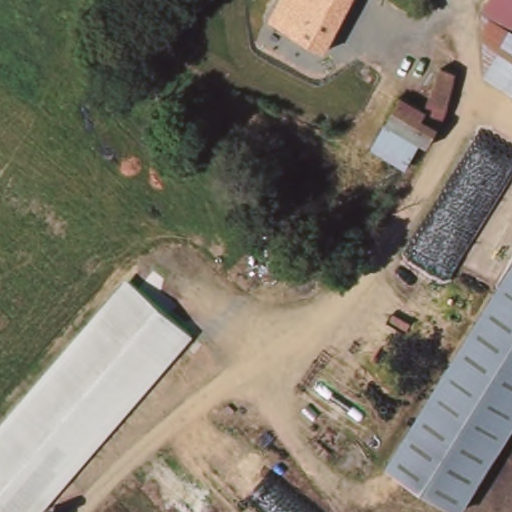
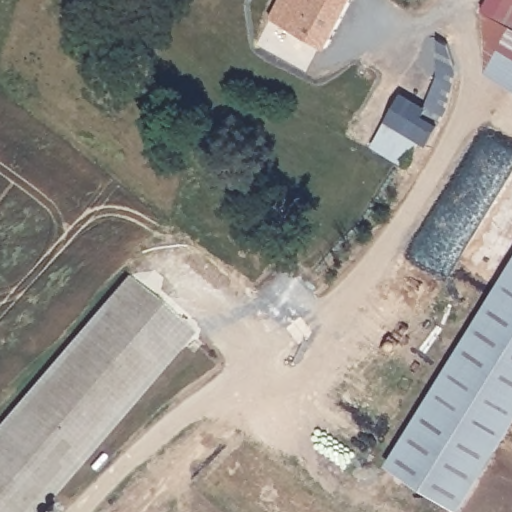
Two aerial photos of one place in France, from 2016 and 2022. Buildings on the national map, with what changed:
unchanged [(326,50),(284,27),(272,19),(271,19),(281,0),(352,0),(326,50)]
unchanged [(507,28),(479,13),(477,11),(484,0),(512,0),(512,31),(507,28)]
unchanged [(482,74),(507,28),(512,31),(512,91),(482,74)]
unchanged [(428,151),(421,147),(391,129),(387,126),(401,100),(425,113),(442,71),(456,77),(448,112),(428,151)]
unchanged [(408,169),(373,150),(387,126),(391,129),(421,147),(408,169)]
unchanged [(456,512),(446,512),(382,472),(512,262),(512,422),(456,512)]
unchanged [(193,335),(40,512),(0,512),(0,424),(126,277),(193,335)]

